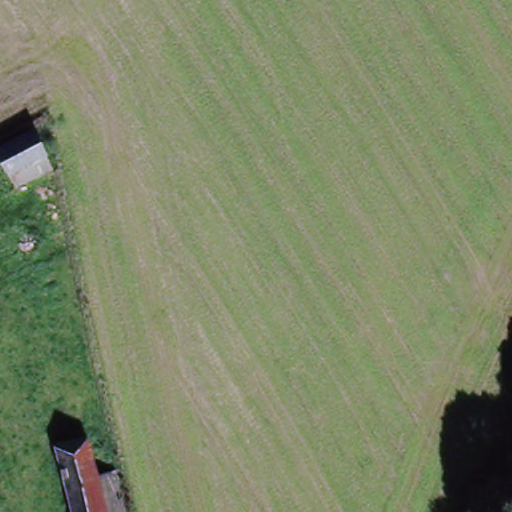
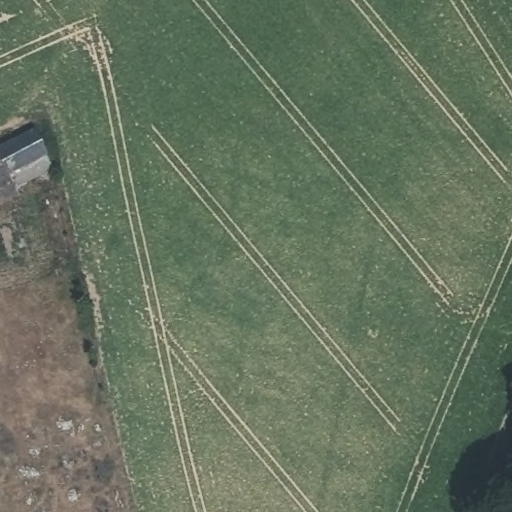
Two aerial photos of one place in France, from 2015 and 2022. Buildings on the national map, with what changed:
unchanged [(35,131),(39,137),(54,169),(18,186),(1,149),(1,148),(35,131)]
demolished [(87,441),(97,479),(106,512),(73,512),(55,450),(87,441)]

